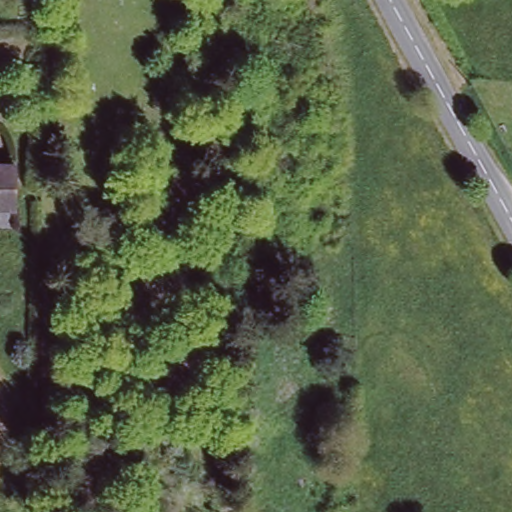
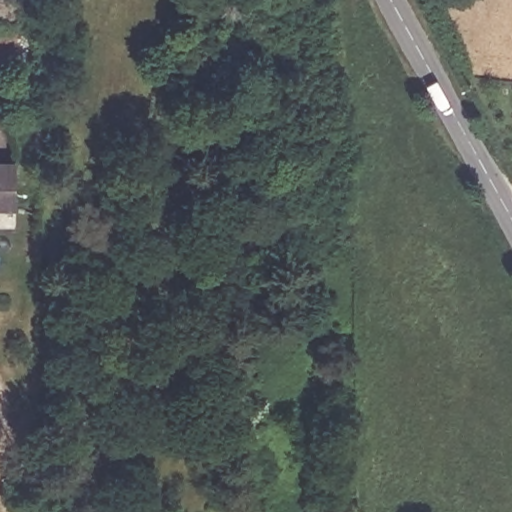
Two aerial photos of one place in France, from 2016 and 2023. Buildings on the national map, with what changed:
unchanged [(10,167),(10,209),(0,209),(0,167),(10,167)]

